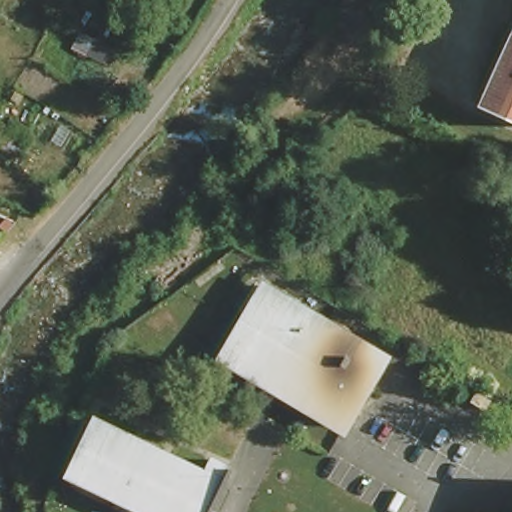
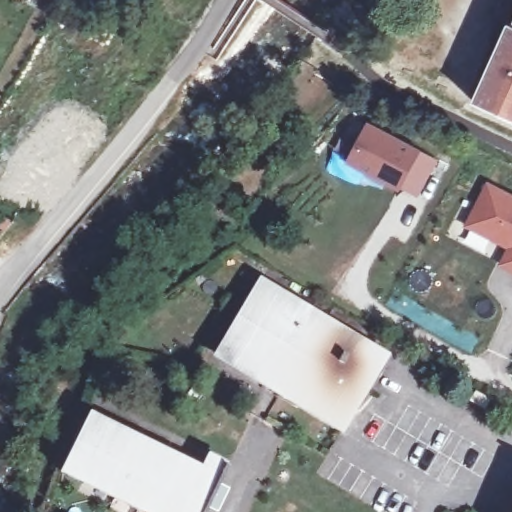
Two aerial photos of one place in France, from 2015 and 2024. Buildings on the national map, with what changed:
unchanged [(485,101),(512,39),(512,113),(485,101)]
new [(401,189),(400,193),(345,164),(367,122),(422,151),(438,161),(417,198),(401,189)]
new [(487,182),(512,195),(512,273),(499,266),(506,249),(463,227),(487,182)]
unchanged [(270,297),(395,370),(353,438),(230,365),(270,297)]
unchanged [(95,426),(171,465),(201,480),(208,468),(227,478),(210,512),(139,512),(81,483),(69,476),(95,426)]

